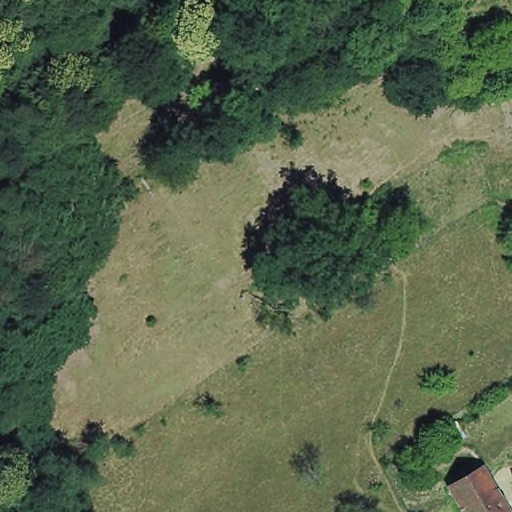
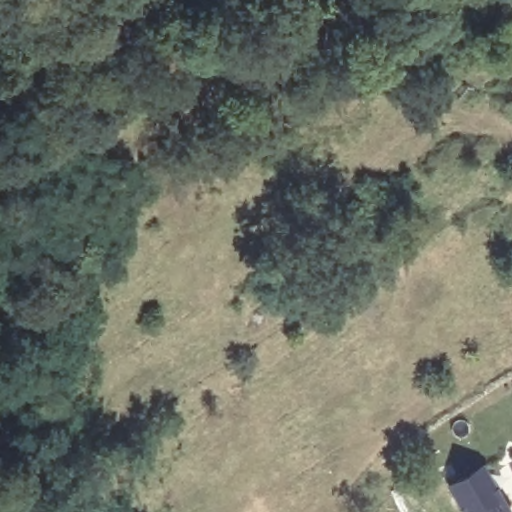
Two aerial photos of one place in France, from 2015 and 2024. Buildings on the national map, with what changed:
unchanged [(482,471),(495,492),(464,512),(462,512),(449,490),(482,471)]
unchanged [(507,512),(464,512),(495,492),(507,512)]

